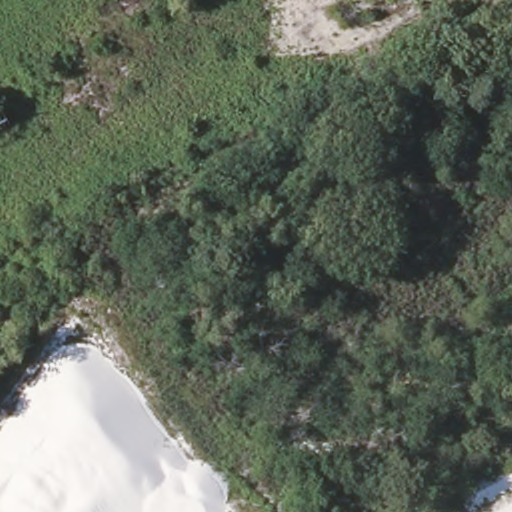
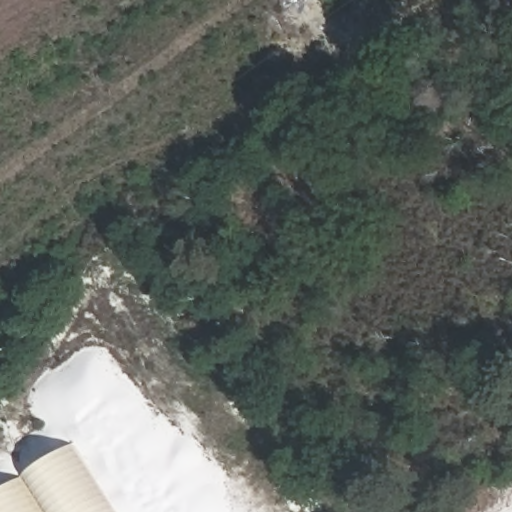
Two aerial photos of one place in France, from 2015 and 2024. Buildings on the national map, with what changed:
new [(126,512),(0,512),(0,496),(83,443),(126,512)]

